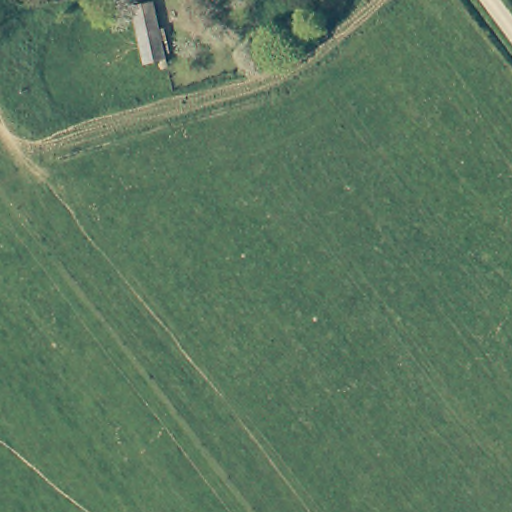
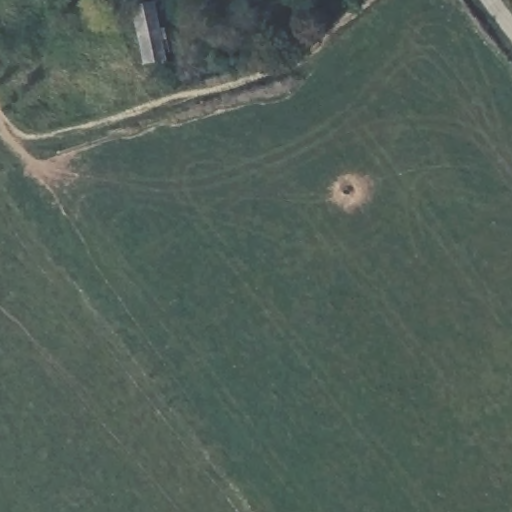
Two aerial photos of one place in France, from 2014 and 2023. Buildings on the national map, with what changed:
unchanged [(133,4),(146,0),(153,0),(165,55),(145,61),(133,4)]

